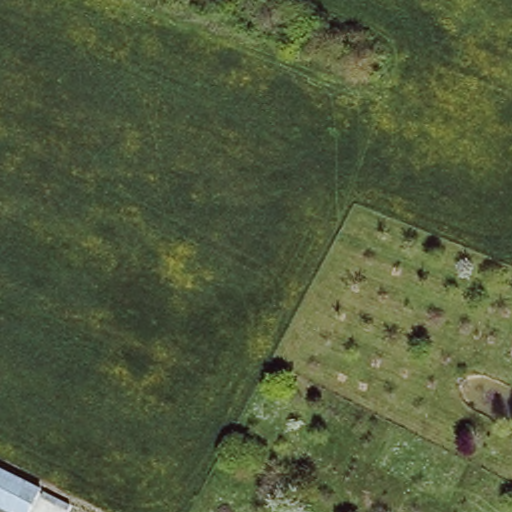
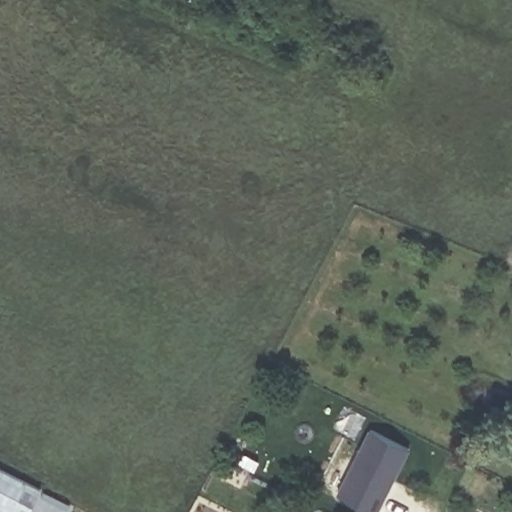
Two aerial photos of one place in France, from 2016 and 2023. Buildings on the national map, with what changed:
new [(411,449),(379,512),(371,512),(337,495),(370,429),(411,449)]
unchanged [(19,512),(10,512),(0,507),(0,471),(32,488),(19,512)]

